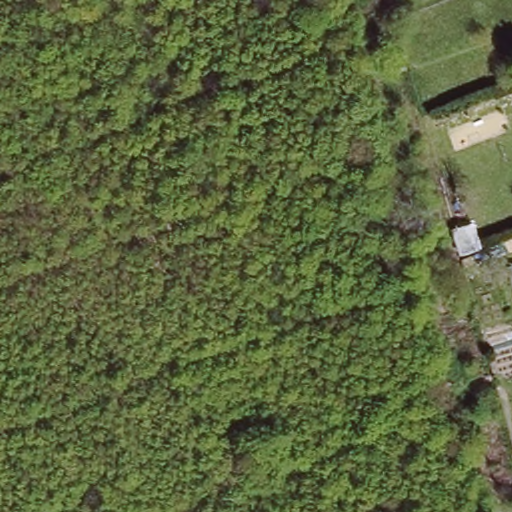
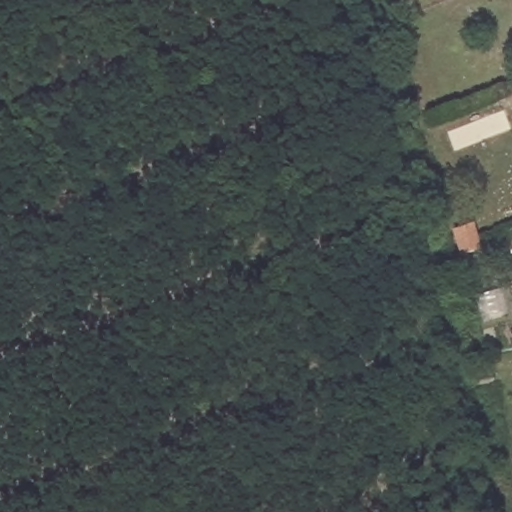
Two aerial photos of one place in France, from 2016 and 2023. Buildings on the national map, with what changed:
unchanged [(466,280),(461,261),(455,241),(473,235),(481,254),(472,256),(480,275),(466,280)]

